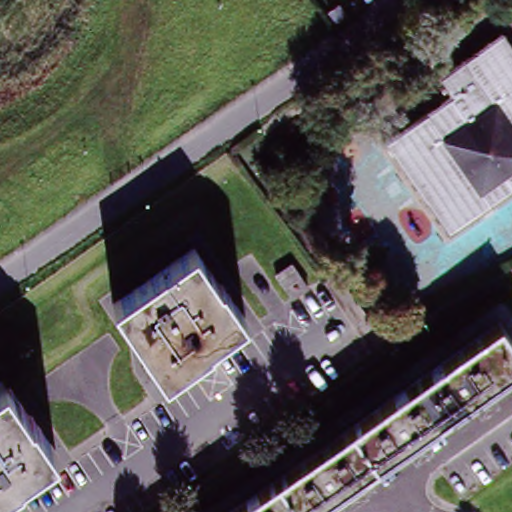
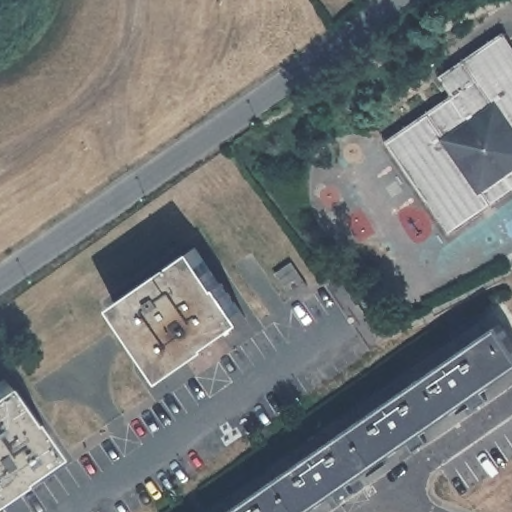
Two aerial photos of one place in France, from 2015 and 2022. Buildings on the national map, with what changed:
unchanged [(443,71),(505,27),(512,38),(512,168),(477,192),(487,207),(452,230),(387,136),(455,88),(443,71)]
unchanged [(512,168),(512,190),(487,207),(477,192),(512,168)]
unchanged [(198,244),(222,277),(224,276),(250,312),(206,341),(208,343),(161,377),(111,306),(198,244)]
unchanged [(300,261),(317,283),(303,293),(287,270),(300,261)]
unchanged [(285,464),(322,438),(354,417),(412,377),(423,368),(492,321),(492,322),(512,351),(512,359),(481,380),(470,387),(476,397),(462,405),(457,397),(412,428),(410,429),(416,438),(402,448),(396,439),(343,476),(342,477),(336,482),(342,491),(328,500),(322,491),(291,512),(217,512),(252,487),(285,464)]
unchanged [(8,377),(34,412),(36,411),(58,442),(23,466),(25,468),(0,486),(0,382),(8,377)]

